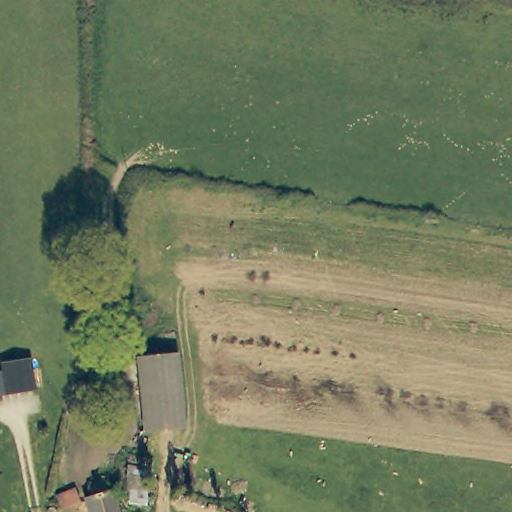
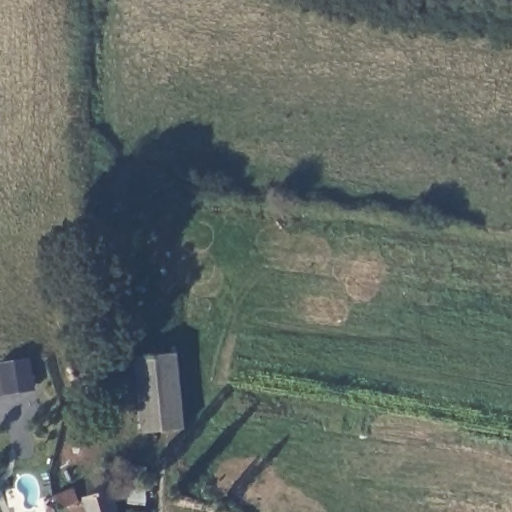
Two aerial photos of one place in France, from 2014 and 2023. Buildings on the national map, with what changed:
unchanged [(176,351),(185,428),(140,431),(133,355),(176,351)]
unchanged [(31,358),(35,385),(5,390),(1,362),(31,358)]
unchanged [(89,505),(94,503),(91,491),(109,486),(113,498),(116,497),(121,512),(91,512),(89,505)]
unchanged [(69,512),(57,512),(54,501),(78,495),(82,509),(69,512)]

